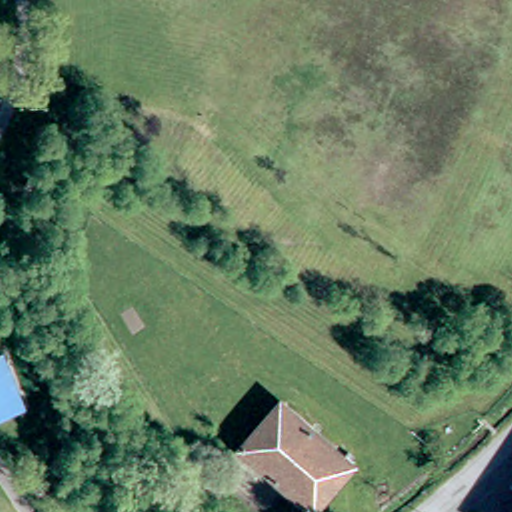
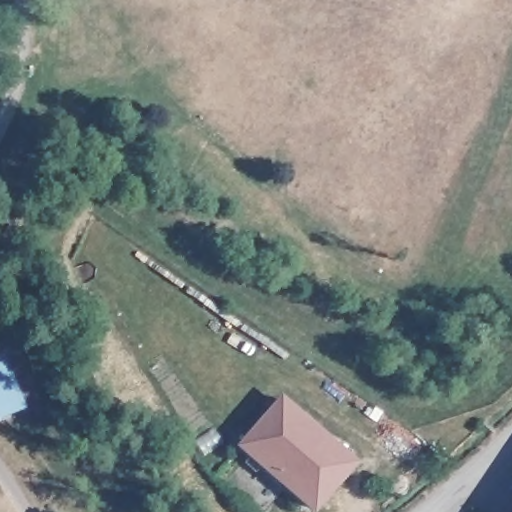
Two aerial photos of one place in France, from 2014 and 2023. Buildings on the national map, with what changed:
unchanged [(31,414),(7,423),(0,426),(0,365),(10,361),(31,414)]
unchanged [(354,456),(360,460),(356,465),(361,468),(323,512),(317,512),(246,450),(286,405),(350,460),(354,456)]

